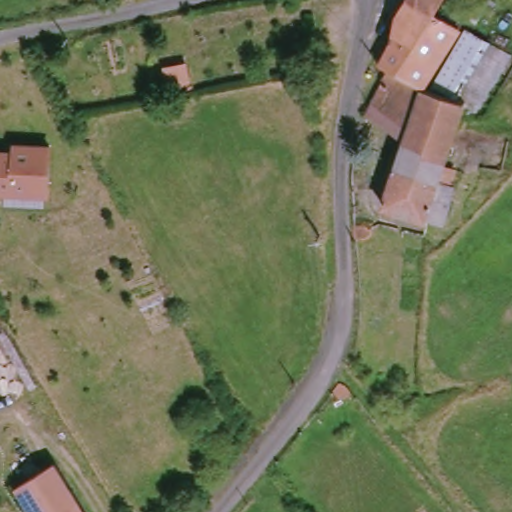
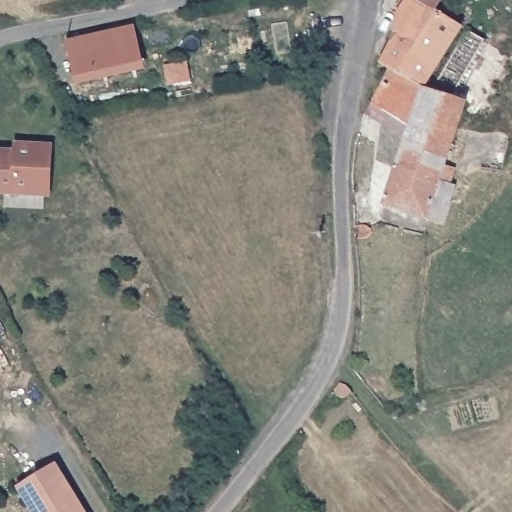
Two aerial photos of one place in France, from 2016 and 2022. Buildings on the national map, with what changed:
unchanged [(417,88),(383,66),(373,60),(386,41),(392,11),(399,0),(414,0),(455,23),(458,25),(420,85),(417,88)]
unchanged [(414,0),(461,0),(467,3),(455,23),(414,0)]
new [(134,24),(145,71),(76,87),(65,39),(134,24)]
unchanged [(465,29),(507,54),(474,110),(468,106),(469,103),(429,89),(465,29)]
unchanged [(467,110),(459,107),(440,163),(451,168),(446,183),(433,178),(429,193),(443,198),(435,219),(421,214),(420,217),(376,201),(399,137),(360,114),(383,66),(417,88),(420,85),(424,87),(429,89),(469,103),(468,106),(467,110)]
unchanged [(0,192),(0,153),(12,154),(13,144),(47,147),(47,195),(0,192)]
unchanged [(53,464),(81,512),(31,512),(17,488),(53,464)]

